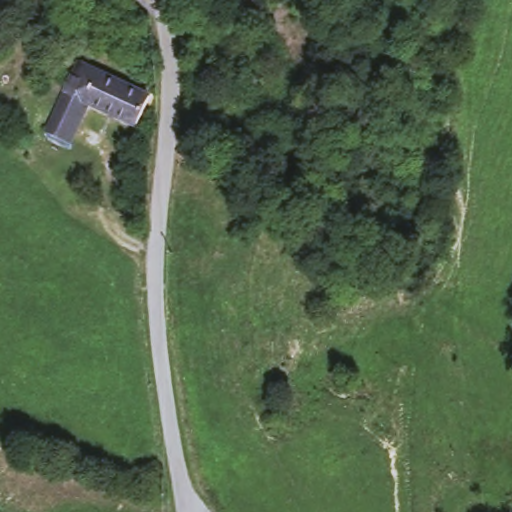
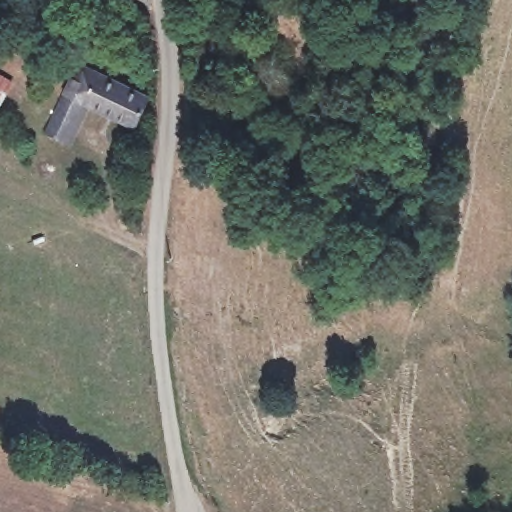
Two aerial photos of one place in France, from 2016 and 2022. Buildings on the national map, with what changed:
unchanged [(151,90),(132,131),(61,91),(80,54),(151,90)]

